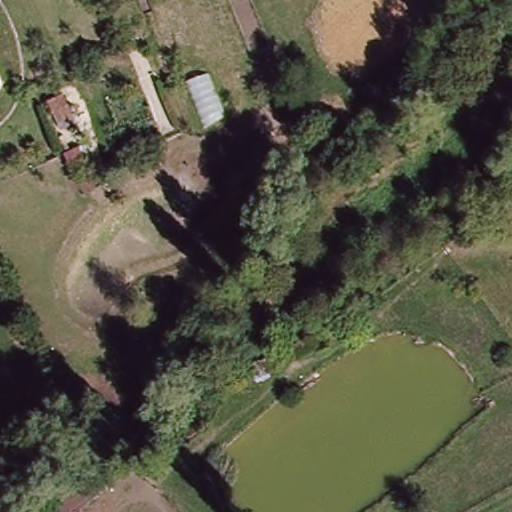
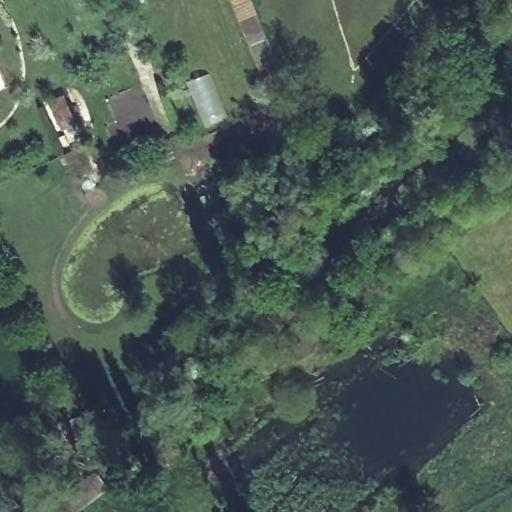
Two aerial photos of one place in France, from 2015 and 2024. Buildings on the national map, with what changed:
unchanged [(290,312),(305,330),(290,340),(276,321),(290,312)]

